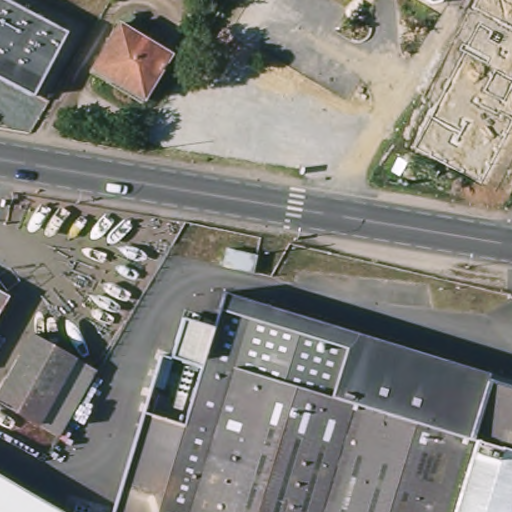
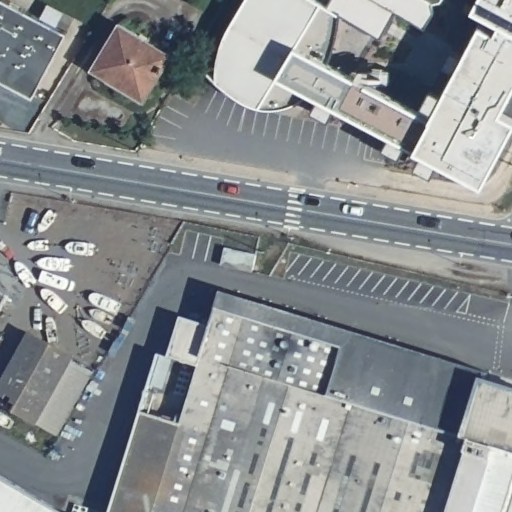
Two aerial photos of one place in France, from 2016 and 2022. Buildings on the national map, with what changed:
unchanged [(67,33),(33,97),(0,80),(0,0),(4,0),(67,33)]
new [(298,100),(281,106),(259,106),(238,97),(216,78),(219,52),(224,36),(233,19),(244,0),(317,0),(326,5),(330,0),(440,0),(431,1),(433,12),(424,26),(395,9),(380,36),(339,12),(327,62),(431,116),(479,23),(494,30),(499,20),(473,6),(477,0),(512,0),(512,88),(500,110),(512,117),(512,125),(482,181),(415,147),(309,91),(298,100)]
unchanged [(143,99),(92,68),(119,23),(170,54),(143,99)]
demolished [(507,86),(480,128),(462,115),(464,112),(448,101),(464,77),(460,74),(468,61),(462,58),(473,42),(492,54),(482,69),(507,86)]
unchanged [(256,256),(251,275),(221,266),(225,248),(256,256)]
unchanged [(170,356),(182,317),(210,326),(222,291),(486,372),(482,386),(496,389),(479,441),(474,439),(337,397),(351,349),(223,309),(213,342),(205,367),(170,356)]
unchanged [(8,297),(0,312),(0,293),(8,297)]
unchanged [(187,425),(223,309),(351,349),(337,397),(474,439),(479,441),(496,389),(512,395),(512,512),(118,512),(147,413),(187,425)]
unchanged [(0,404),(0,386),(30,334),(95,370),(58,437),(0,404)]
unchanged [(0,512),(0,476),(62,512),(0,512)]

